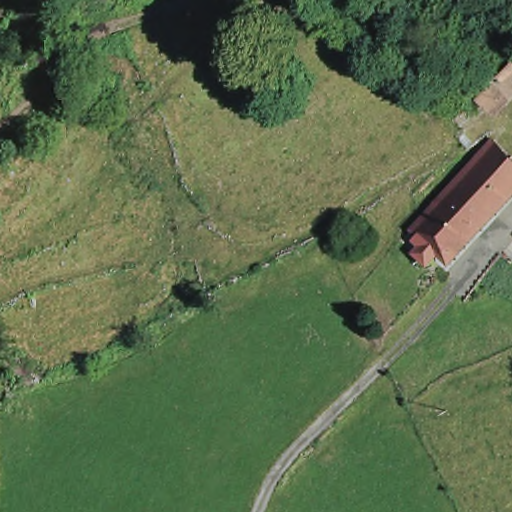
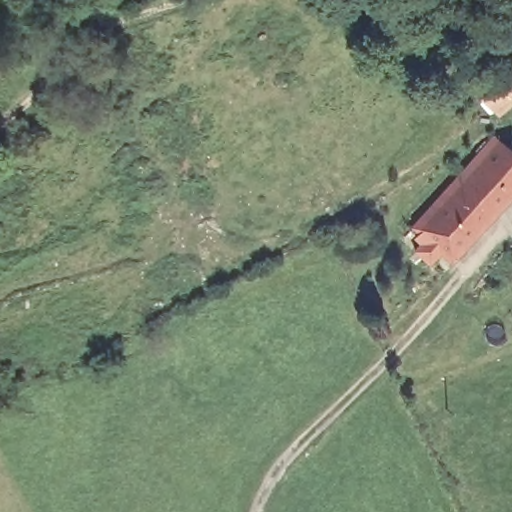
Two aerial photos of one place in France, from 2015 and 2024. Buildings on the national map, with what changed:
unchanged [(498,114),(480,98),(512,64),(512,99),(498,114)]
unchanged [(488,219),(452,185),(483,153),(501,133),(512,144),(512,193),(488,219)]
unchanged [(433,259),(418,244),(429,233),(418,223),(452,185),(488,219),(454,255),(445,247),(433,259)]

